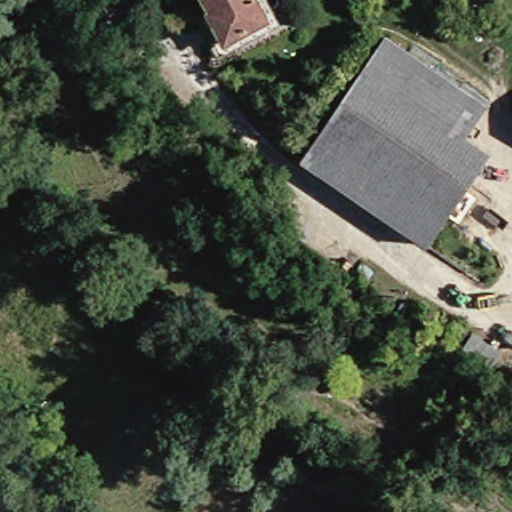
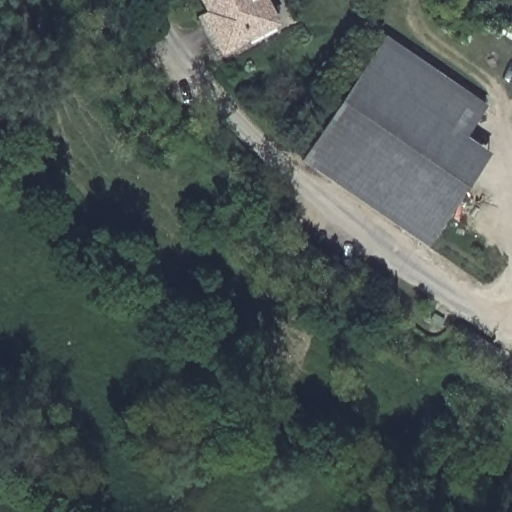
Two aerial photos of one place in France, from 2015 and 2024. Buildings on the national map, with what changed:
unchanged [(267,14),(236,37),(238,42),(226,51),(204,18),(214,9),(208,0),(257,0),(267,14)]
unchanged [(482,114),(460,146),(484,165),(424,247),(315,170),(298,158),(383,40),(388,43),(482,114)]

